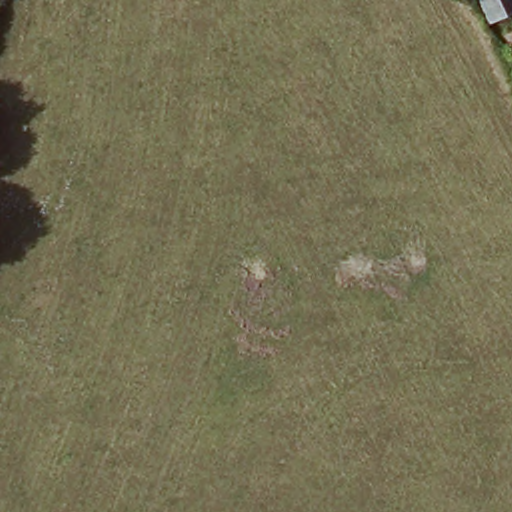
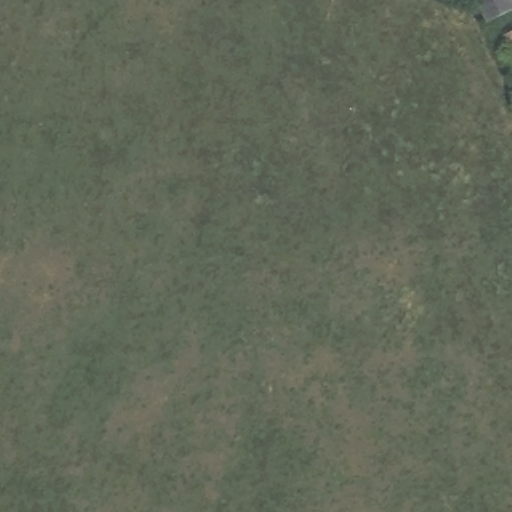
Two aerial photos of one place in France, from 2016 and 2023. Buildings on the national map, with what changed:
unchanged [(512,7),(487,18),(478,0),(512,0),(512,7)]
unchanged [(512,52),(504,34),(512,30),(512,52)]

